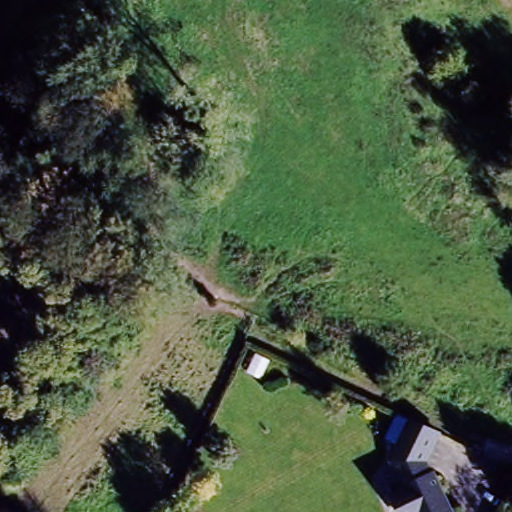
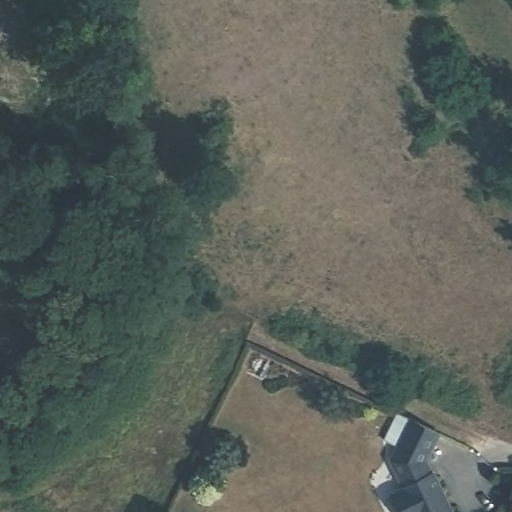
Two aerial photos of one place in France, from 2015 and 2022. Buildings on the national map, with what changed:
unchanged [(267,342),(281,349),(272,367),(259,360),(267,342)]
unchanged [(430,458),(457,512),(397,512),(386,492),(401,487),(388,459),(408,417),(443,430),(430,458)]

